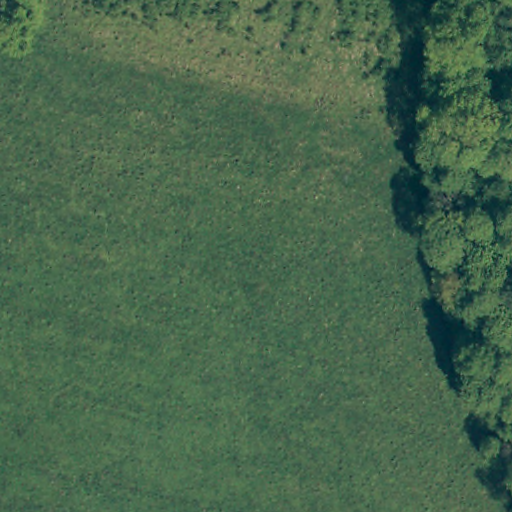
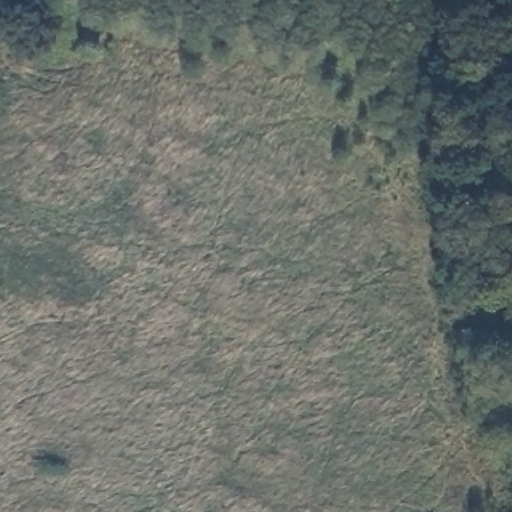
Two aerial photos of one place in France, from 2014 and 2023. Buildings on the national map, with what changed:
unchanged [(0,13),(0,0),(2,0),(0,13)]

